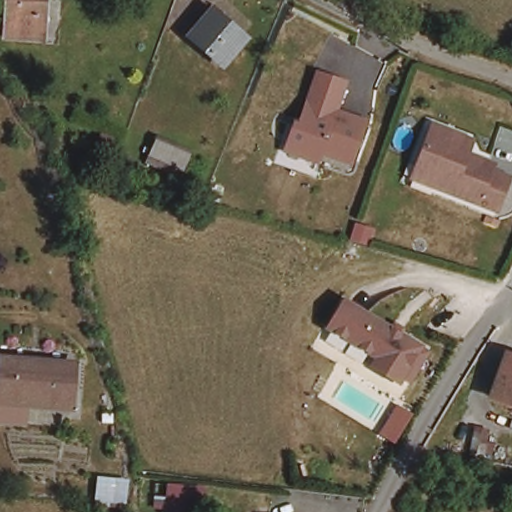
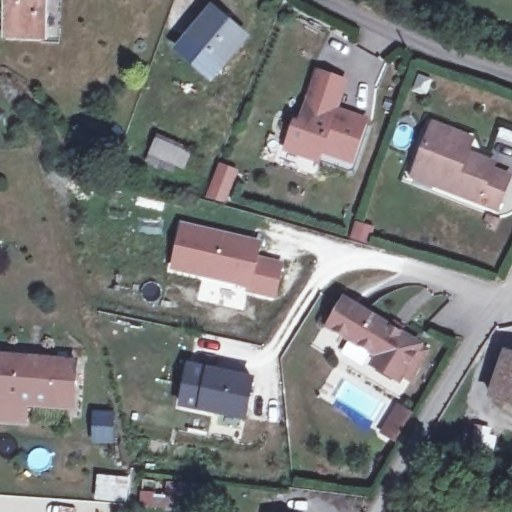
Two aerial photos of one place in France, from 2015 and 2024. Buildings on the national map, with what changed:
unchanged [(47,6),(47,31),(7,31),(9,0),(38,0),(37,4),(47,6)]
unchanged [(246,30),(224,56),(194,31),(215,5),(246,30)]
unchanged [(291,136),(297,120),(302,121),(304,116),(302,115),(308,98),(318,70),(345,79),(335,106),(365,116),(352,156),(323,146),(320,156),(309,153),(287,145),(291,136)]
unchanged [(430,115),(466,128),(473,131),(467,146),(497,156),(495,163),(512,169),(512,177),(502,207),(430,181),(409,174),(412,164),(430,115)]
unchanged [(187,151),(185,163),(165,158),(164,164),(148,160),(152,145),(187,151)]
new [(210,197),(215,186),(222,167),(235,172),(229,191),(224,202),(210,197)]
unchanged [(493,210),(505,216),(502,223),(490,216),(493,210)]
new [(247,289),(170,271),(180,223),(262,243),(260,257),(285,263),(277,301),(245,293),(247,289)]
unchanged [(405,380),(397,374),(395,377),(373,360),(380,351),(334,317),(350,295),(392,326),(397,320),(404,326),(400,332),(419,346),(418,347),(425,352),(405,380)]
unchanged [(512,353),(512,398),(485,389),(502,350),(512,353)]
unchanged [(77,403),(29,398),(25,415),(0,412),(0,374),(3,351),(82,360),(77,403)]
new [(179,408),(187,365),(207,368),(257,378),(247,421),(199,411),(179,408)]
unchanged [(472,431),(485,437),(476,458),(462,452),(472,431)]
unchanged [(135,479),(135,512),(96,507),(100,471),(135,479)]
unchanged [(172,486),(197,490),(193,512),(180,512),(167,510),(172,486)]

